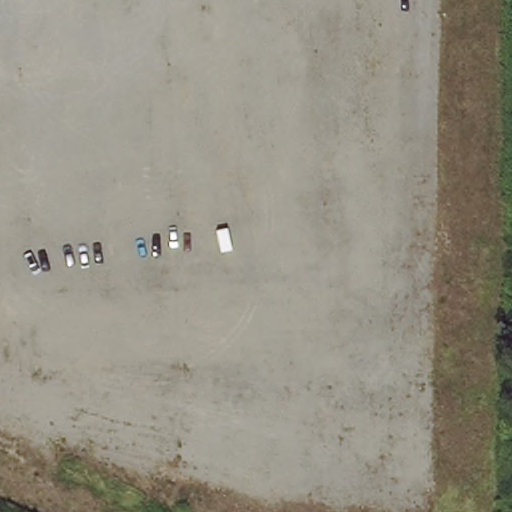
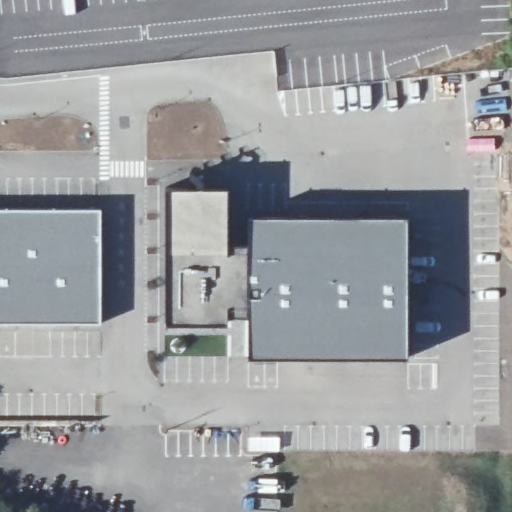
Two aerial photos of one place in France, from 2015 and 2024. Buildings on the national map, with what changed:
new [(249,358),(248,317),(222,316),(222,325),(166,325),(166,190),(225,190),(225,247),(250,247),(249,218),(407,216),(405,360),(249,358)]
new [(0,210),(100,210),(100,323),(0,324),(0,210)]

